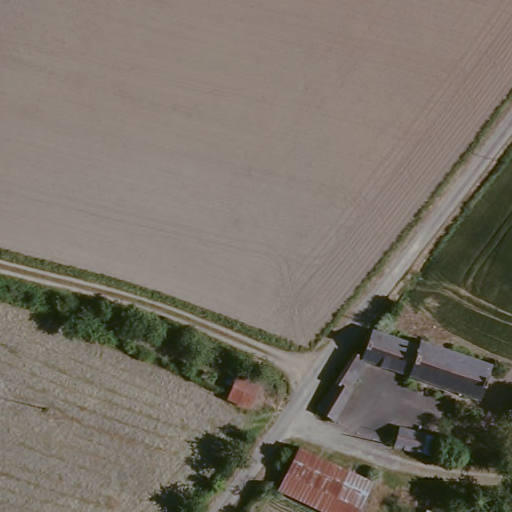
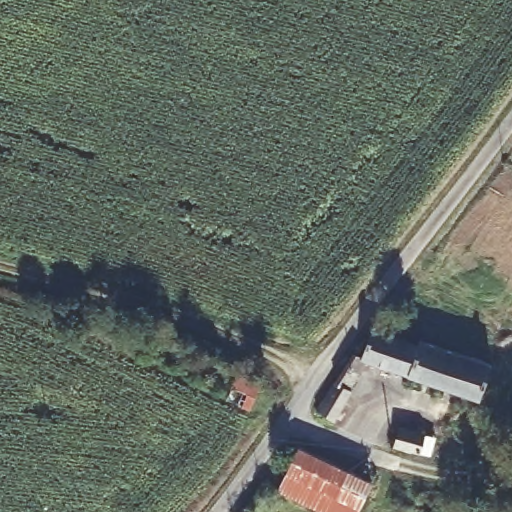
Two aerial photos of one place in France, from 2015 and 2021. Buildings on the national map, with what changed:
unchanged [(381,327),(390,331),(425,344),(428,338),(467,352),(456,385),(381,358),(371,355),(381,327)]
unchanged [(363,352),(371,355),(381,358),(362,387),(365,389),(347,418),(327,409),(363,352)]
unchanged [(500,364),(489,397),(456,385),(467,352),(500,364)]
unchanged [(262,376),(253,402),(230,394),(240,368),(262,376)]
unchanged [(422,434),(415,452),(390,443),(398,426),(422,434)]
unchanged [(361,512),(348,512),(282,486),(300,445),(375,477),(361,512)]

